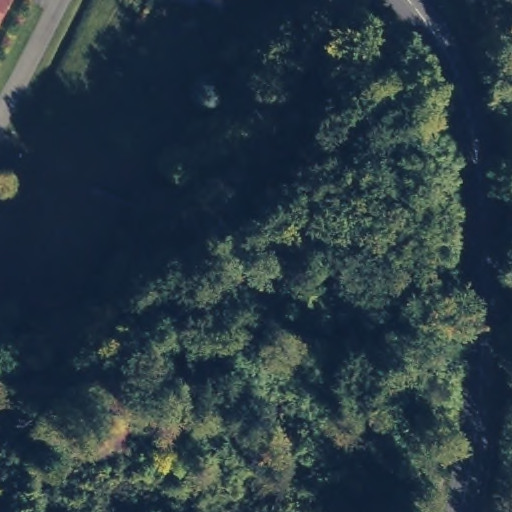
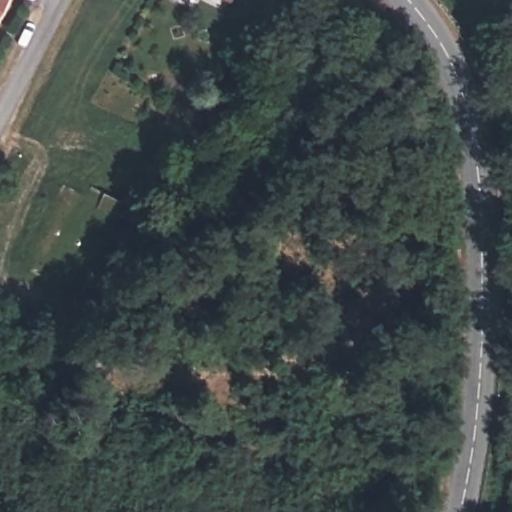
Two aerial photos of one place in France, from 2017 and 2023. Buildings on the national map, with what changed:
unchanged [(0,0),(2,0),(0,3),(0,0)]

